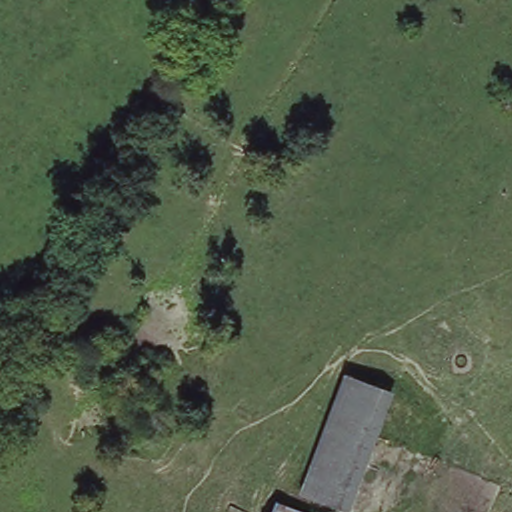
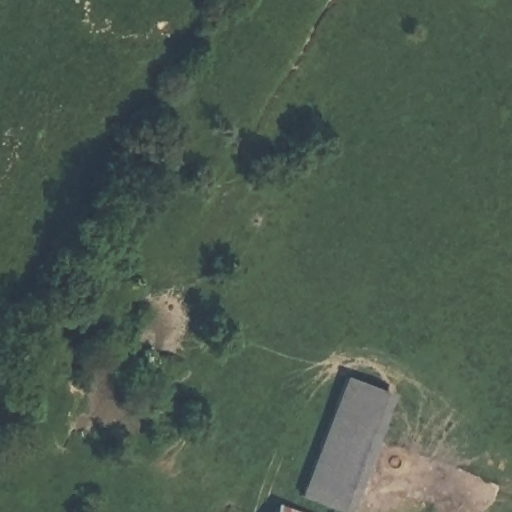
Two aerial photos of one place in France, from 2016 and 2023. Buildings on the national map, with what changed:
unchanged [(393,392),(346,512),(343,512),(298,494),(343,374),(393,392)]
unchanged [(291,512),(277,512),(278,507),(291,512)]

